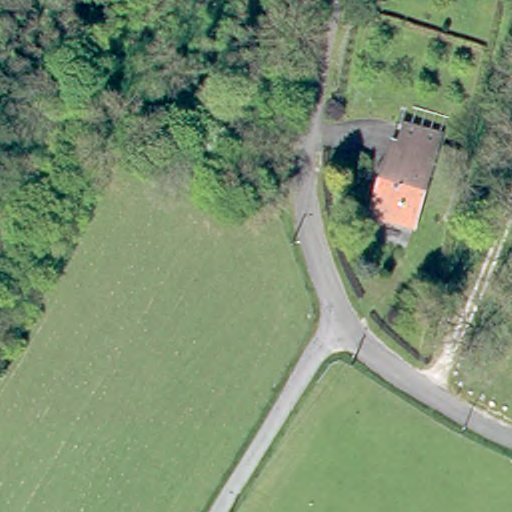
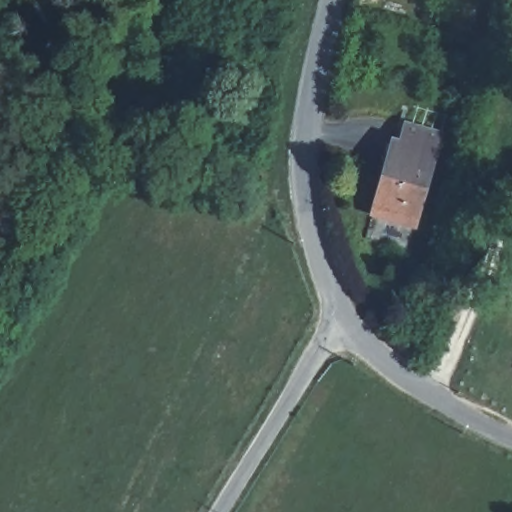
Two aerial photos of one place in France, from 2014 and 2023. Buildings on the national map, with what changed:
unchanged [(441,143),(421,217),(379,204),(399,130),(441,143)]

